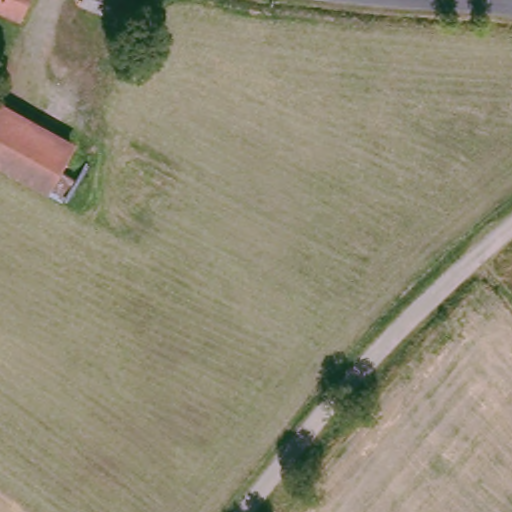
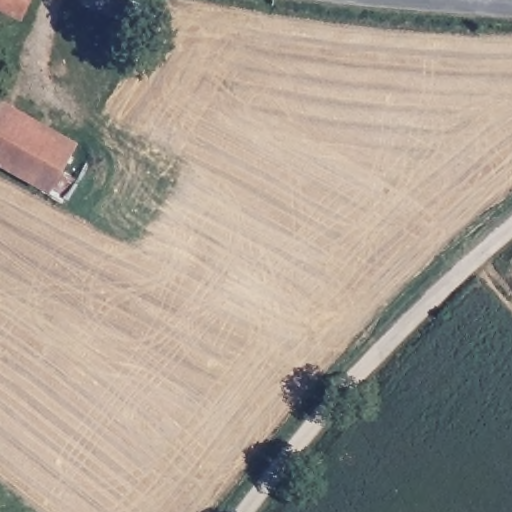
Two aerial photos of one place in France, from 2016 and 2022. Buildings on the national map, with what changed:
unchanged [(13,15),(0,9),(0,0),(20,0),(13,15)]
unchanged [(57,190),(45,183),(0,159),(0,102),(68,139),(57,164),(67,170),(57,190)]

